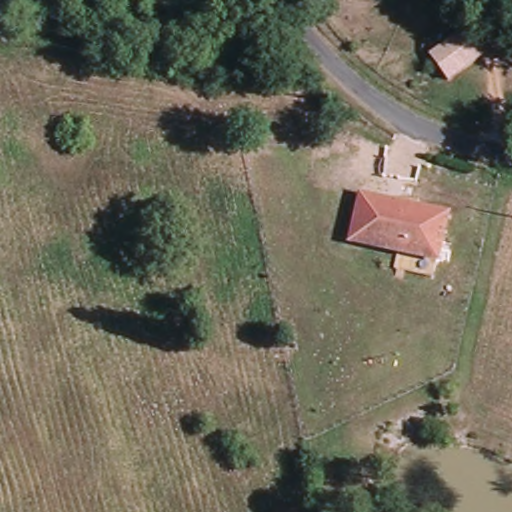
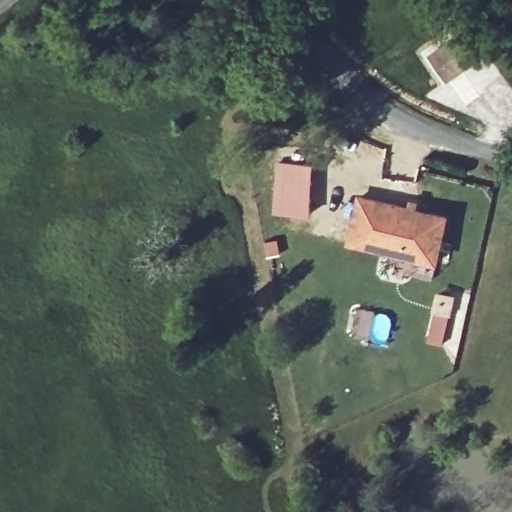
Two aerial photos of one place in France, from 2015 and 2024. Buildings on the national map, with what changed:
unchanged [(481,56),(448,80),(430,55),(462,32),(481,56)]
unchanged [(318,113),(304,111),(305,99),(321,101),(318,113)]
new [(279,163),(308,165),(306,214),(276,212),(279,163)]
unchanged [(349,244),(359,200),(445,217),(435,261),(349,244)]

